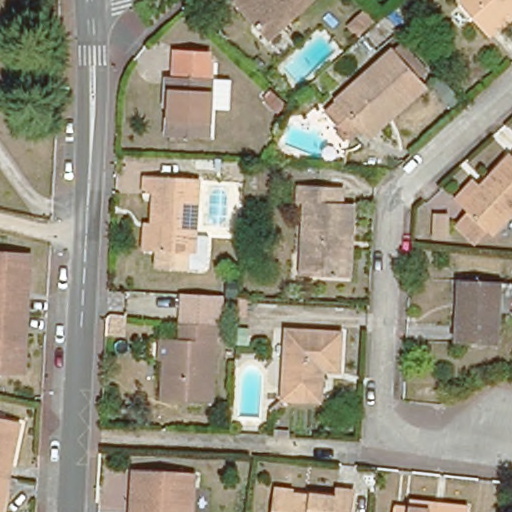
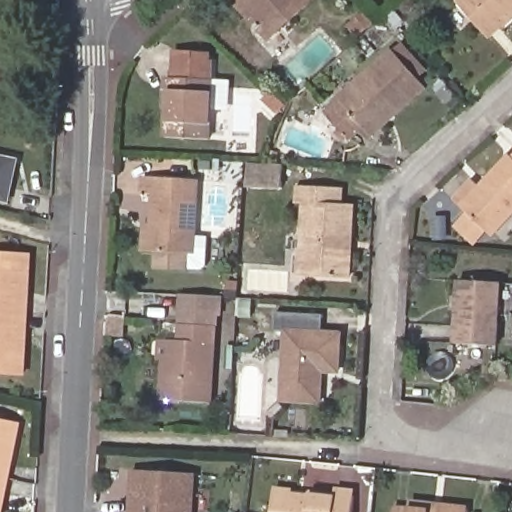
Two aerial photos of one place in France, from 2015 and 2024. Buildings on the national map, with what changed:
unchanged [(266,36),(235,0),(236,0),(308,0),(266,36)]
unchanged [(512,17),(491,37),(460,1),(461,0),(512,0),(512,17)]
unchanged [(382,132),(374,124),(363,134),(337,105),(404,47),(429,76),(436,84),(382,132)]
unchanged [(166,131),(172,71),(176,72),(178,55),(218,60),(210,136),(166,131)]
new [(10,203),(0,201),(0,154),(19,158),(10,203)]
unchanged [(512,155),(512,215),(492,235),(471,215),(462,206),(486,181),(512,155)]
unchanged [(202,271),(183,270),(183,273),(153,271),(154,253),(147,253),(140,252),(141,225),(149,225),(150,198),(139,197),(140,182),(194,185),(191,255),(203,256),(202,271)]
unchanged [(306,254),(309,204),(301,203),(303,185),(345,186),(345,202),(356,203),(354,242),(352,278),(346,277),(311,275),(304,274),(306,254)]
unchanged [(28,373),(27,374),(0,373),(0,255),(32,257),(31,294),(30,316),(29,339),(28,373)]
unchanged [(453,341),(458,277),(500,281),(496,344),(453,341)]
unchanged [(155,398),(157,360),(163,360),(164,339),(177,339),(179,324),(212,325),(208,401),(155,398)]
unchanged [(315,396),(280,394),(284,326),(335,329),(333,365),(317,365),(315,396)]
unchanged [(24,423),(14,478),(0,475),(0,418),(24,423)]
unchanged [(142,512),(143,501),(126,499),(129,470),(191,474),(189,512),(142,512)]
unchanged [(14,478),(8,512),(0,512),(0,475),(14,478)]
unchanged [(354,486),(352,512),(273,512),(276,479),(292,480),(293,482),(295,482),(310,484),(335,486),(336,484),(354,486)]
unchanged [(393,512),(394,506),(411,507),(411,500),(441,503),(467,506),(467,512),(393,512)]

